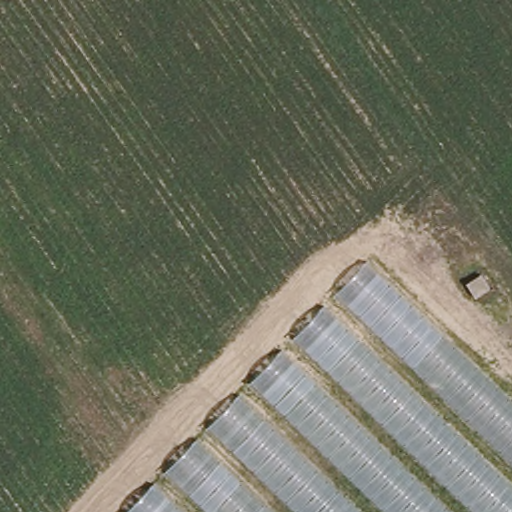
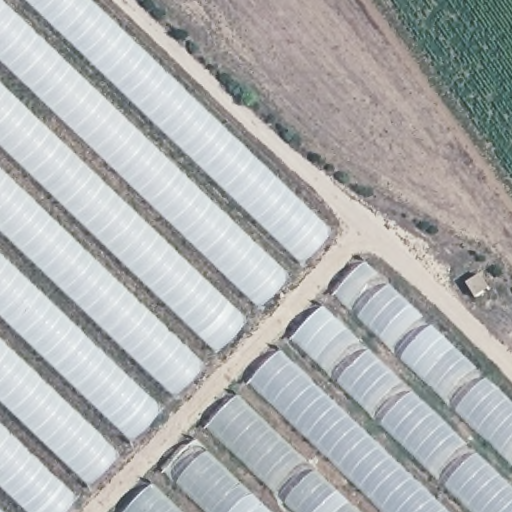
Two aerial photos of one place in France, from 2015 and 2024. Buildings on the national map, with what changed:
new [(85,0),(330,232),(62,512),(0,512),(0,0),(85,0)]
unchanged [(365,267),(512,407),(512,512),(129,512),(365,267)]
unchanged [(491,289),(477,299),(467,285),(481,275),(491,289)]

